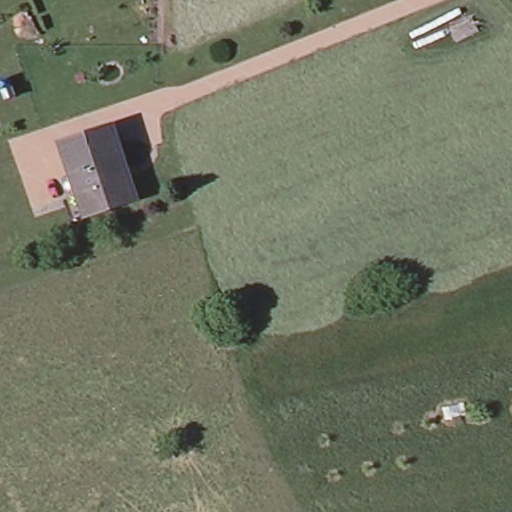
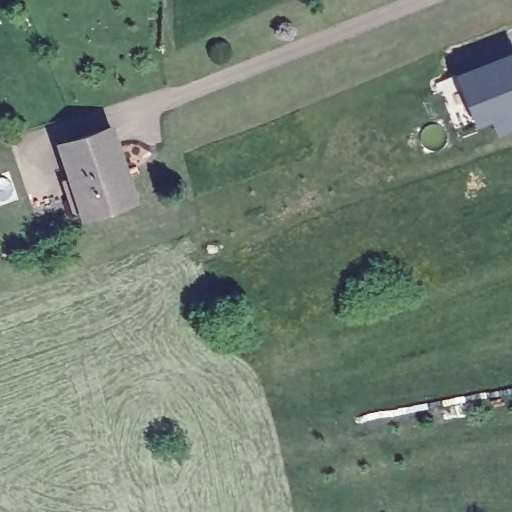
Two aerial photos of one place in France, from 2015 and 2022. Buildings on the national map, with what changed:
new [(502,129),(496,113),(480,119),(465,79),(512,60),(512,125),(502,129)]
unchanged [(111,128),(134,199),(86,215),(63,144),(111,128)]

